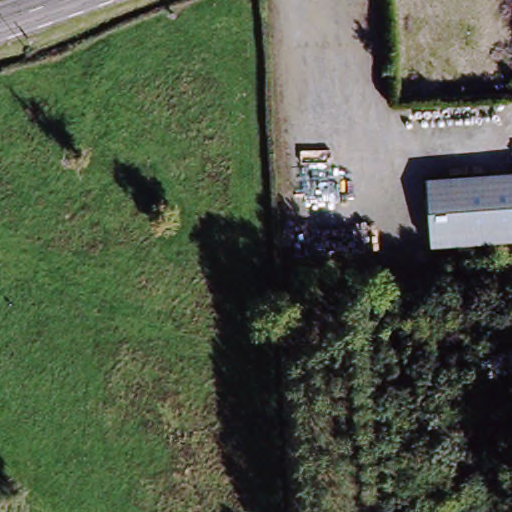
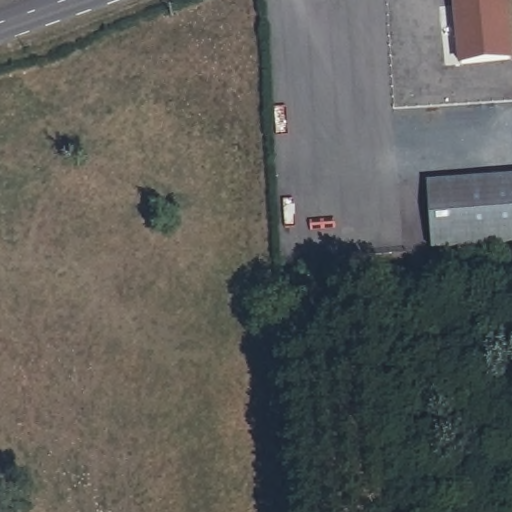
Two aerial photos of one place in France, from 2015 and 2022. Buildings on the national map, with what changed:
new [(512,43),(512,57),(463,62),(457,0),(507,0),(512,43)]
unchanged [(434,249),(430,182),(512,178),(512,244),(434,249)]

